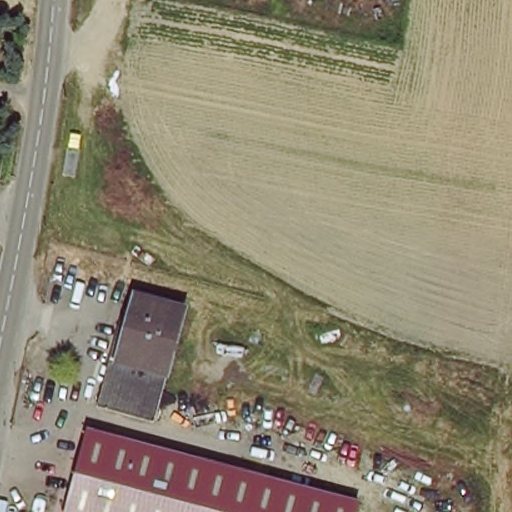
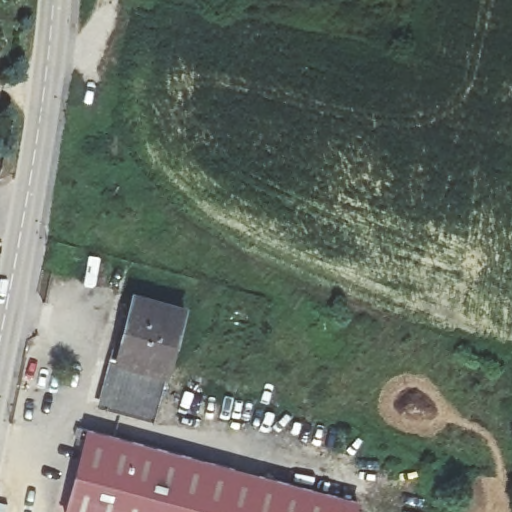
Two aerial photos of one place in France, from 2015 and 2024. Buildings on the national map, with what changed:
unchanged [(136,295),(184,309),(155,416),(103,403),(136,295)]
unchanged [(354,494),(349,512),(67,512),(95,419),(354,494)]

